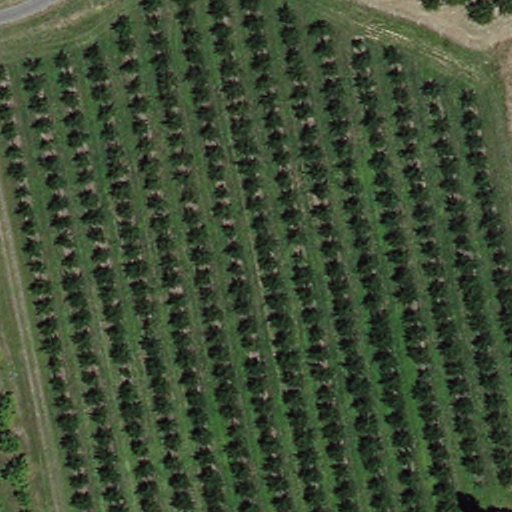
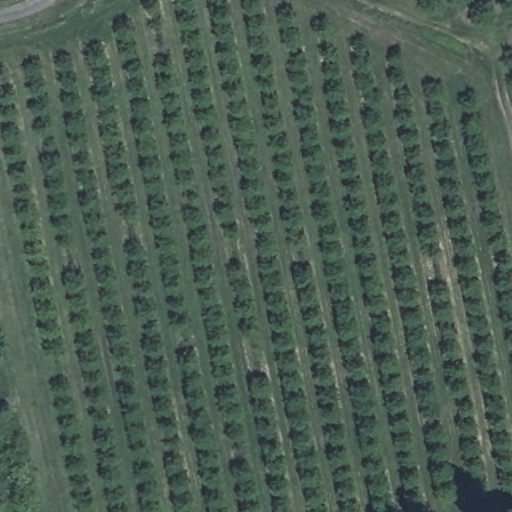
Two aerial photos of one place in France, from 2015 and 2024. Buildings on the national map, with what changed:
[]

